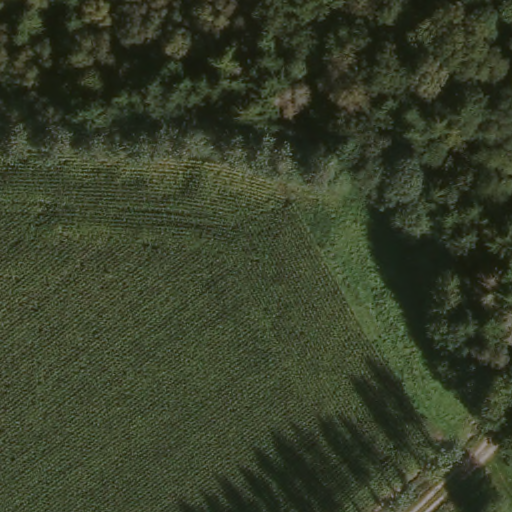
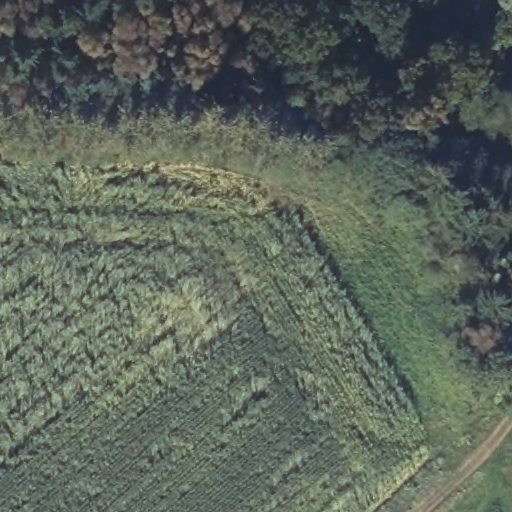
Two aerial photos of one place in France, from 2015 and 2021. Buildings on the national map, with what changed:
[]

